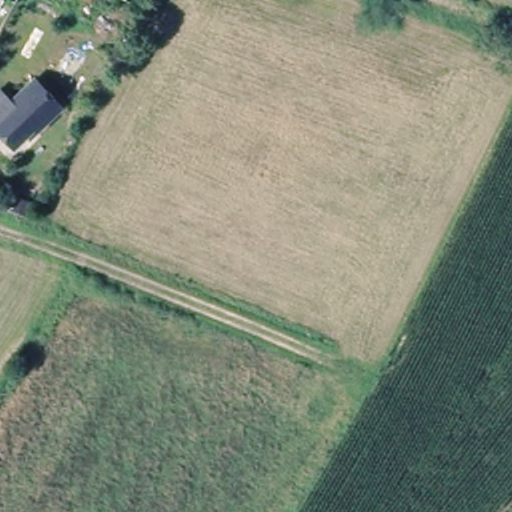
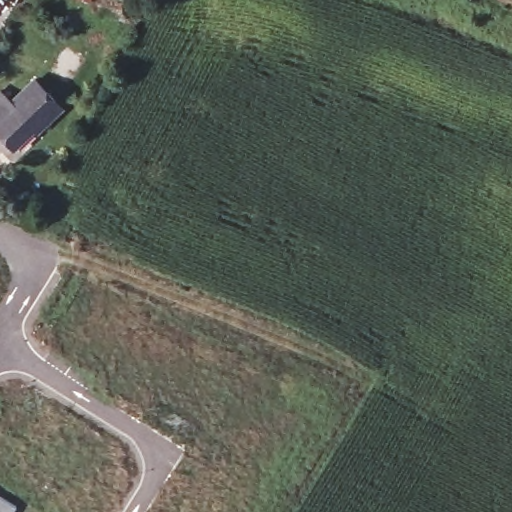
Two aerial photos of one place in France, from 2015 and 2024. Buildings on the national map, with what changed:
unchanged [(89,3),(85,0),(91,0),(89,3)]
unchanged [(37,136),(34,133),(14,153),(0,138),(0,97),(10,108),(34,85),(61,113),(37,136)]
new [(13,512),(0,512),(0,495),(17,506),(13,512)]

